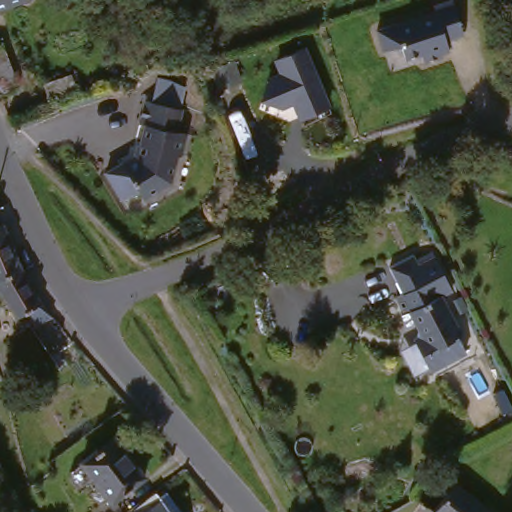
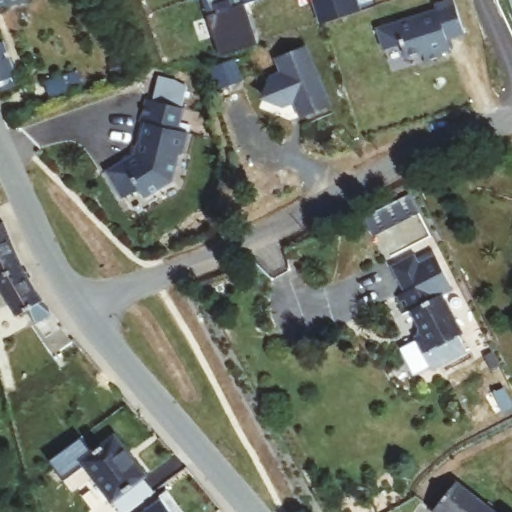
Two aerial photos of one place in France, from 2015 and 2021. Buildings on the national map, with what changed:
unchanged [(0,12),(0,0),(25,0),(26,2),(0,12)]
new [(256,46),(219,56),(201,0),(252,0),(244,3),(256,46)]
unchanged [(378,34),(436,14),(434,10),(453,3),(464,37),(447,43),(451,54),(443,57),(444,60),(426,67),(423,57),(407,62),(402,49),(385,55),(378,34)]
unchanged [(327,106),(304,116),(297,101),(281,108),(261,102),(269,82),(281,77),(274,64),(301,51),(327,106)]
unchanged [(0,96),(0,56),(13,92),(0,96)]
unchanged [(232,63),(238,81),(215,88),(209,71),(232,63)]
unchanged [(76,90),(50,99),(45,84),(71,76),(76,90)]
unchanged [(122,166),(124,169),(137,160),(144,129),(137,127),(143,104),(180,111),(175,134),(185,136),(181,157),(176,160),(170,185),(144,202),(139,193),(123,203),(106,177),(122,166)]
unchanged [(0,230),(17,271),(38,305),(11,321),(0,303),(0,230)]
unchanged [(418,268),(433,260),(452,295),(441,301),(463,340),(459,342),(467,357),(432,376),(415,343),(419,342),(420,335),(411,317),(406,321),(397,303),(404,300),(389,273),(413,260),(418,268)]
unchanged [(143,483),(108,508),(75,466),(109,440),(143,483)]
unchanged [(59,480),(56,482),(56,483),(41,495),(36,487),(54,473),(59,480)]
unchanged [(450,487),(482,512),(430,512),(450,487)]
unchanged [(160,497),(171,512),(130,512),(151,497),(154,501),(160,497)]

